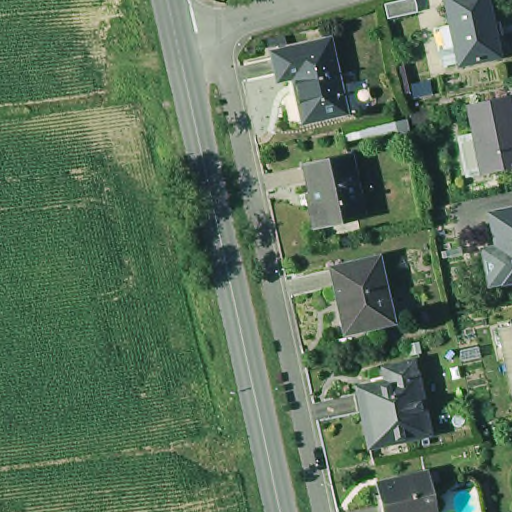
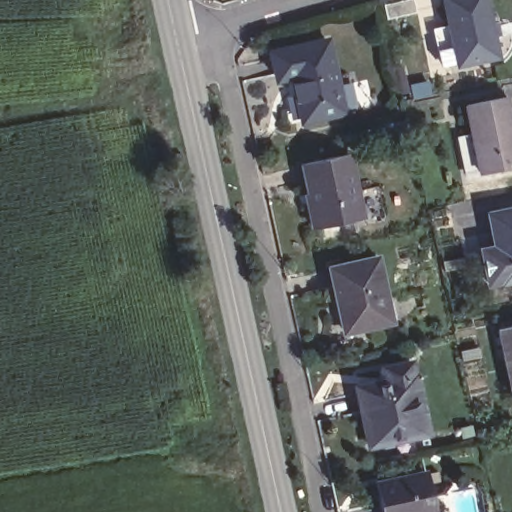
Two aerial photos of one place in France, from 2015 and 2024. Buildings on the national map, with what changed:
unchanged [(383,4),(401,0),(414,0),(417,12),(387,19),(383,4)]
unchanged [(445,0),(487,0),(499,54),(459,62),(445,0)]
unchanged [(285,78),(280,51),(335,40),(350,111),(309,120),(300,75),(285,78)]
unchanged [(472,104),(512,96),(512,169),(485,175),(478,135),(472,104)]
unchanged [(354,154),(367,219),(320,229),(314,202),(317,202),(310,163),(354,154)]
unchanged [(508,278),(494,209),(512,205),(512,278),(508,278)]
unchanged [(381,258),(395,323),(350,334),(335,269),(381,258)]
unchanged [(499,328),(512,326),(512,392),(499,328)]
unchanged [(423,375),(425,374),(436,431),(407,437),(406,430),(385,435),(381,415),(372,416),(366,385),(395,378),(393,366),(420,360),(423,375)]
unchanged [(435,470),(443,511),(439,512),(393,512),(390,497),(386,481),(392,480),(435,470)]

